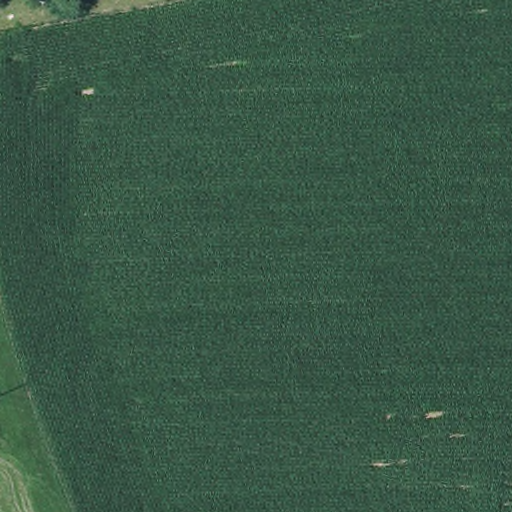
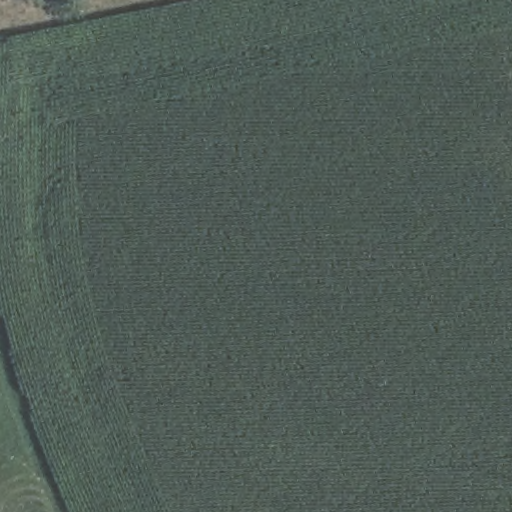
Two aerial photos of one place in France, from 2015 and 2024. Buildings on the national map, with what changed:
[]

